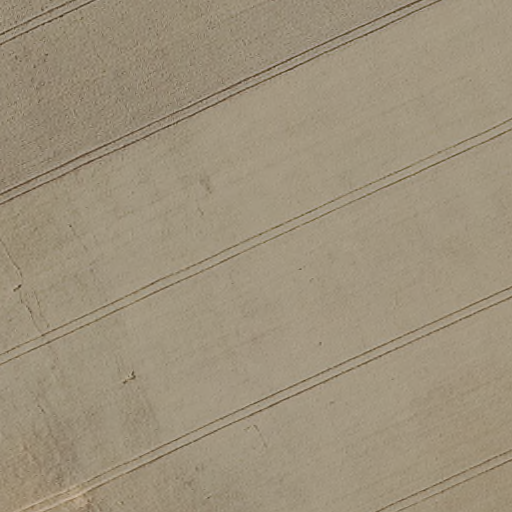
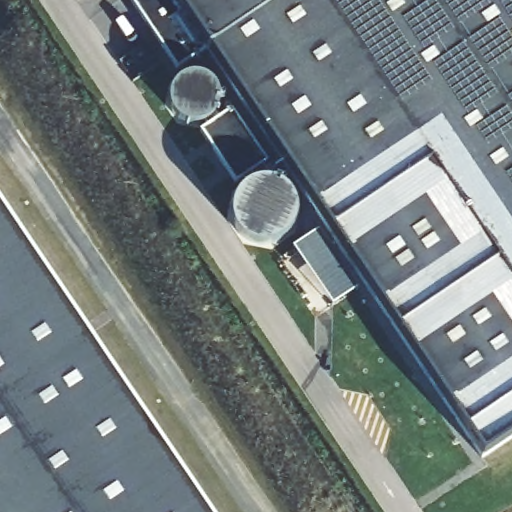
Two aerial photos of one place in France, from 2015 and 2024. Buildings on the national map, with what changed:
new [(208,39),(180,56),(141,0),(512,0),(512,439),(484,458),(208,39)]
new [(207,127),(205,123),(211,117),(215,112),(219,119),(232,110),(267,164),(263,166),(273,182),(263,180),(255,181),(251,175),(235,185),(200,132),(207,127)]
new [(205,512),(0,512),(0,206),(205,512)]
new [(355,292),(332,308),(292,250),(317,234),(355,292)]

